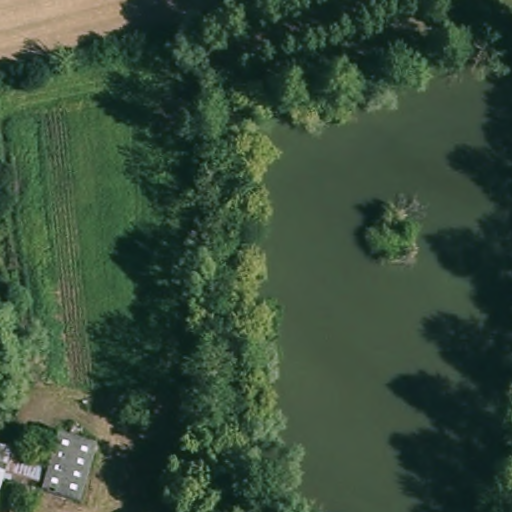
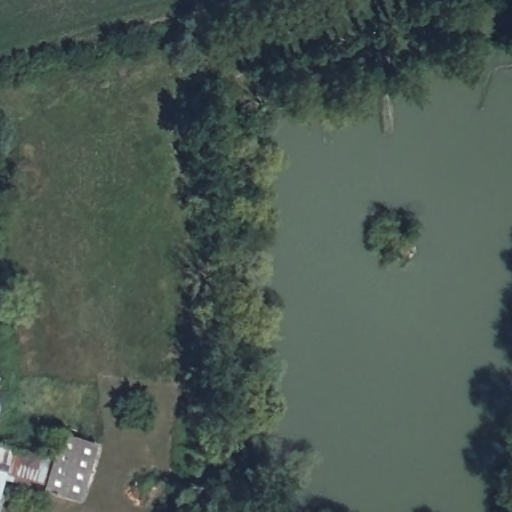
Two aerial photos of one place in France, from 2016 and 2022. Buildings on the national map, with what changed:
unchanged [(0,400),(1,400),(0,406),(0,400)]
unchanged [(56,433),(96,447),(81,503),(4,482),(0,495),(0,446),(50,461),(56,433)]

